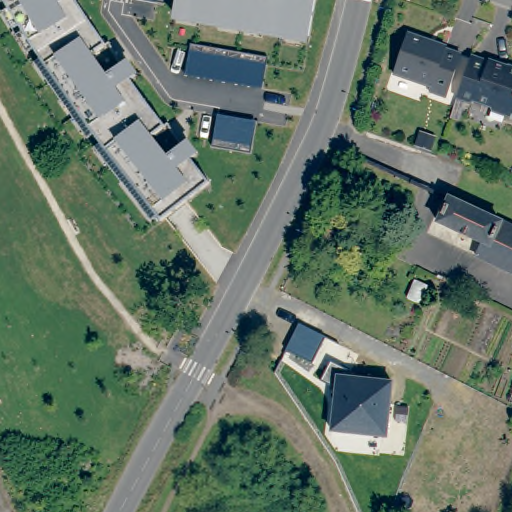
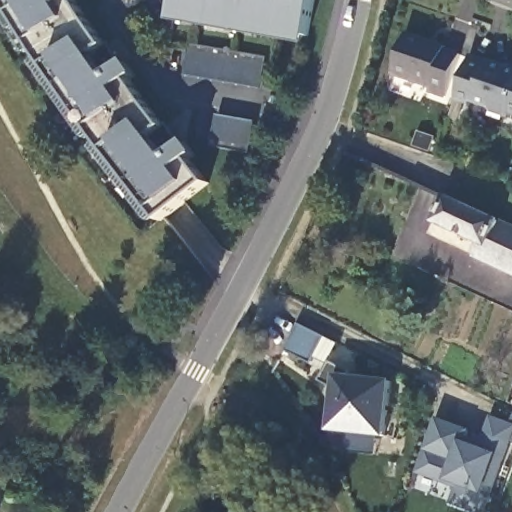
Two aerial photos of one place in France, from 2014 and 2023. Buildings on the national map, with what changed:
unchanged [(41,65),(1,0),(72,0),(104,47),(91,57),(105,80),(128,64),(136,76),(127,82),(162,130),(152,137),(167,157),(186,141),(197,155),(190,161),(208,185),(158,224),(41,65)]
new [(165,5),(158,4),(137,0),(166,0),(165,5)]
unchanged [(172,24),(176,0),(314,0),(306,46),(172,24)]
unchanged [(447,98),(430,94),(431,87),(394,76),(407,35),(444,46),(443,50),(461,55),(447,98)]
unchanged [(184,78),(190,45),(266,60),(261,90),(184,78)]
unchanged [(486,63),(487,61),(512,69),(512,119),(506,117),(506,115),(490,110),(488,107),(475,102),(470,104),(456,98),(470,57),(486,63)]
unchanged [(212,147),(217,117),(255,124),(250,156),(212,147)]
unchanged [(475,239),(429,219),(440,194),(512,226),(512,273),(469,255),(475,239)]
new [(300,325),(327,338),(314,365),(287,352),(300,325)]
unchanged [(330,434),(334,392),(320,383),(330,366),(352,380),(393,384),(387,441),(330,434)]
new [(466,445),(483,451),(488,436),(494,421),(512,427),(512,443),(511,444),(486,512),(477,512),(455,504),(462,485),(422,471),(440,422),(470,432),(466,445)]

